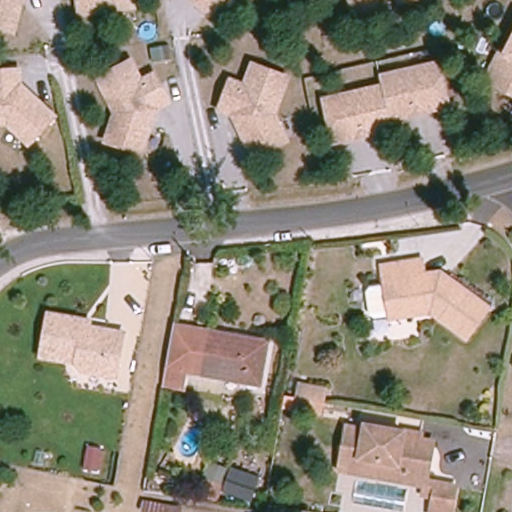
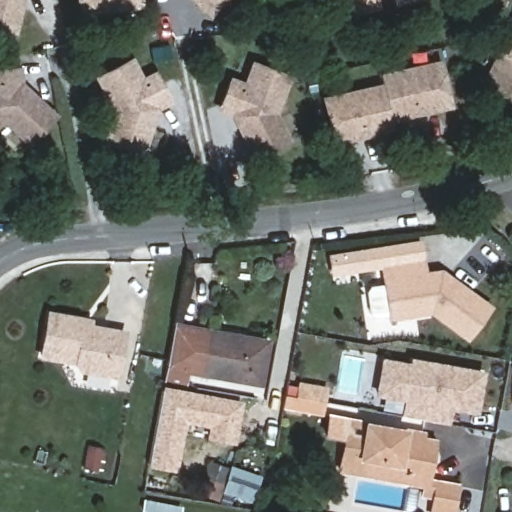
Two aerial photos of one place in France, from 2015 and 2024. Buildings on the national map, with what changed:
unchanged [(0,28),(0,0),(23,0),(15,32),(0,28)]
unchanged [(78,14),(77,0),(141,0),(142,7),(78,14)]
unchanged [(209,16),(191,0),(224,0),(209,16)]
unchanged [(381,9),(352,15),(348,0),(379,0),(381,9)]
unchanged [(399,6),(397,0),(421,0),(399,6)]
unchanged [(502,54),(512,33),(512,96),(483,81),(502,54)]
unchanged [(171,102),(157,110),(142,152),(104,139),(113,111),(95,77),(132,55),(142,77),(155,68),(171,102)]
unchanged [(380,82),(377,73),(438,58),(450,106),(388,120),(391,131),(371,135),(362,127),(358,128),(352,138),(331,144),(322,96),(380,82)]
unchanged [(277,111),(289,140),(252,158),(233,116),(218,109),(231,75),(243,81),(251,60),(291,75),(277,111)]
unchanged [(21,65),(21,81),(56,114),(28,146),(6,124),(0,125),(0,67),(21,65)]
unchanged [(442,267),(490,303),(468,332),(432,307),(408,310),(410,318),(386,321),(381,289),(387,287),(384,261),(423,255),(425,270),(441,267),(442,267)]
unchanged [(85,318),(84,324),(126,331),(118,374),(82,368),(77,360),(44,355),(51,312),(85,318)]
unchanged [(269,342),(261,384),(186,371),(183,388),(164,385),(175,325),(269,342)]
new [(452,409),(450,423),(383,411),(386,398),(373,395),(381,357),(409,361),(410,357),(485,370),(477,414),(452,409)]
new [(297,383),(326,388),(323,401),(321,415),(293,410),(296,397),(297,383)]
new [(235,444),(206,438),(207,427),(186,422),(177,472),(147,466),(164,385),(183,388),(242,400),(235,444)]
unchanged [(344,432),(361,435),(362,430),(418,440),(418,445),(431,447),(422,491),(402,487),(405,471),(358,462),(355,478),(337,475),(344,432)]
unchanged [(231,467),(217,503),(200,497),(212,461),(231,467)]
unchanged [(452,491),(449,512),(429,512),(433,488),(452,491)]
unchanged [(181,512),(154,512),(145,510),(147,497),(183,503),(181,512)]

